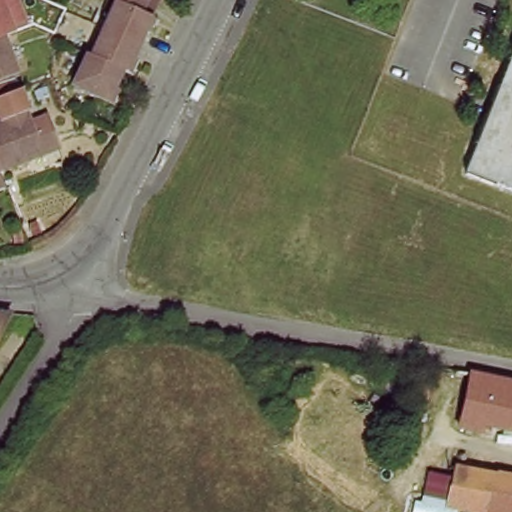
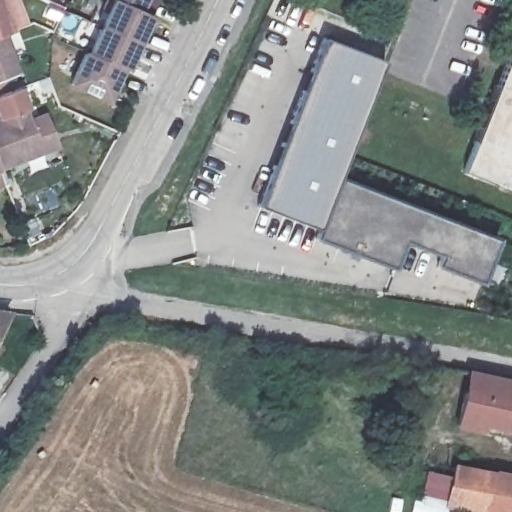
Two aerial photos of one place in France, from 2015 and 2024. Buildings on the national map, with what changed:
unchanged [(110,0),(154,0),(160,4),(150,24),(115,5),(116,3),(110,0)]
unchanged [(115,5),(150,24),(137,49),(102,32),(115,5)]
unchanged [(7,6),(16,43),(8,45),(0,48),(0,8),(7,6)]
unchanged [(102,32),(137,49),(124,74),(119,71),(89,56),(102,32)]
unchanged [(8,45),(19,85),(7,90),(8,103),(0,105),(0,48),(8,45)]
new [(442,264),(405,250),(395,277),(318,247),(321,239),(261,215),(328,48),(388,72),(343,186),(499,248),(482,291),(448,277),(439,274),(440,269),(442,264)]
unchanged [(119,71),(104,104),(68,86),(85,54),(89,56),(119,71)]
unchanged [(512,54),(512,195),(461,173),(512,54)]
unchanged [(24,98),(43,162),(0,177),(0,105),(8,103),(24,98)]
unchanged [(13,319),(0,341),(0,316),(13,319)]
unchanged [(512,383),(512,432),(482,426),(479,434),(455,427),(468,375),(512,383)]
unchanged [(438,483),(441,464),(512,475),(512,512),(485,512),(436,503),(438,483)]

